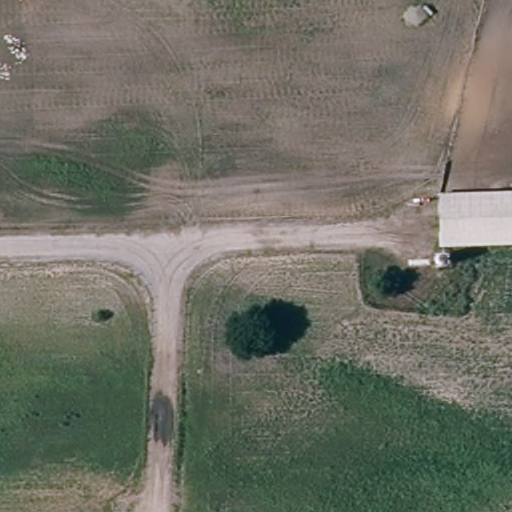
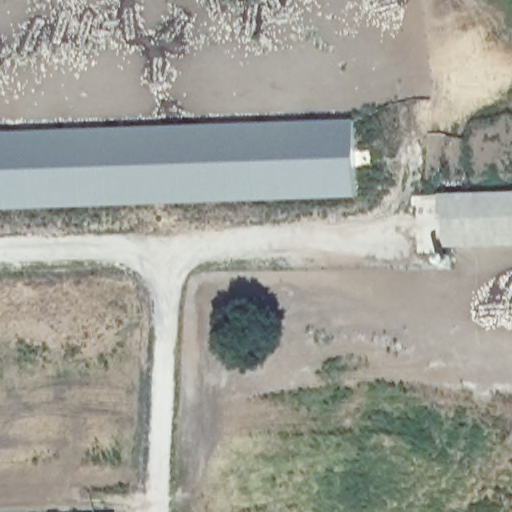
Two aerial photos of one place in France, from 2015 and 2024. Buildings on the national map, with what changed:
new [(71,126),(354,119),(354,198),(215,201),(0,211),(0,130),(71,126)]
unchanged [(512,242),(440,244),(439,192),(512,190),(512,242)]

